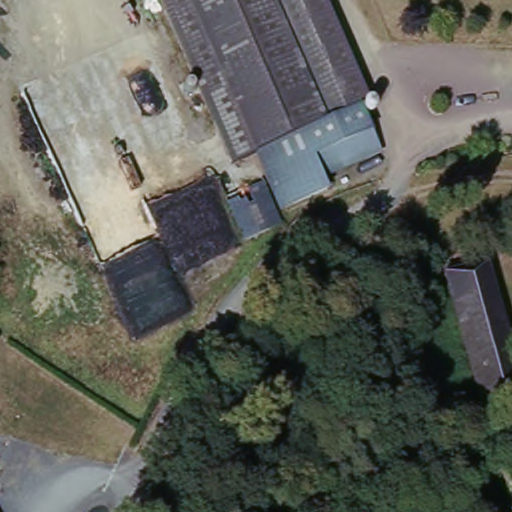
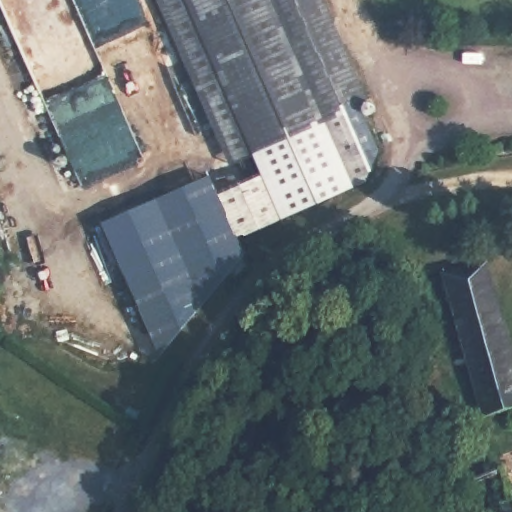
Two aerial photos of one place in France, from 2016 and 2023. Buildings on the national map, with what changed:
unchanged [(361,110),(382,155),(324,185),(329,195),(285,212),(259,165),(237,177),(159,0),(321,0),(367,106),(361,110)]
new [(209,175),(249,257),(168,349),(155,346),(102,224),(209,175)]
new [(283,210),(280,211),(288,227),(247,246),(224,196),(267,179),(283,210)]
demolished [(293,229),(258,246),(237,206),(272,190),(293,229)]
unchanged [(512,369),(512,397),(480,405),(441,266),(482,255),(512,369)]

